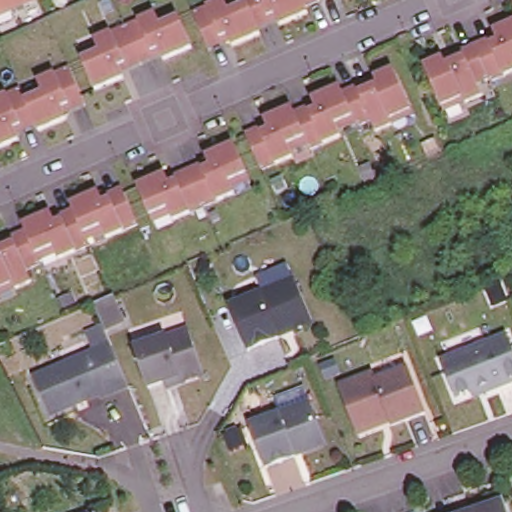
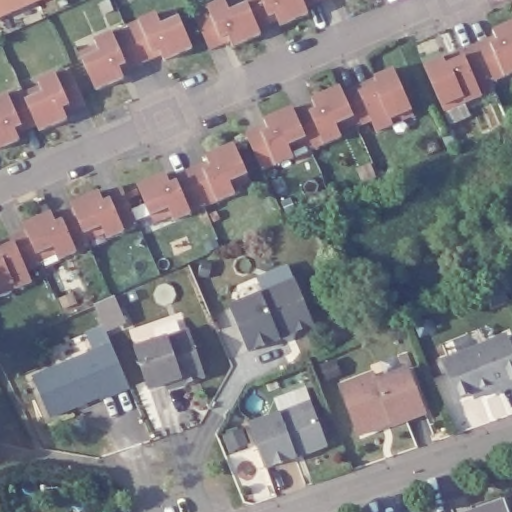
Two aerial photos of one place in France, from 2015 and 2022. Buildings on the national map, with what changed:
unchanged [(17,11),(0,19),(0,0),(12,0),(17,11)]
unchanged [(17,11),(12,0),(42,0),(17,11)]
unchanged [(206,49),(192,17),(224,2),(229,15),(245,7),(242,0),(318,0),(320,5),(305,11),(307,17),(280,30),(275,19),(255,27),(260,37),(232,50),(229,45),(209,54),(206,49)]
unchanged [(120,77),(122,82),(95,94),(82,64),(78,57),(95,49),(93,44),(155,17),(157,22),(175,14),(178,22),(192,52),(163,65),(160,59),(140,68),(120,77)]
unchanged [(489,82),(476,88),(481,99),(465,107),(462,101),(442,110),(423,69),(442,61),(445,68),(462,61),(460,54),(475,47),(477,54),(497,45),(492,34),(512,25),(512,75),(490,86),(489,82)]
unchanged [(20,92),(25,105),(42,97),(37,86),(68,72),(82,102),(82,103),(84,109),(64,117),(66,122),(39,136),(34,124),(14,133),(19,144),(0,152),(0,101),(20,92)]
unchanged [(265,129),(264,123),(291,111),(296,122),(315,114),(311,102),(339,90),(342,97),(357,90),(359,96),(377,87),(374,81),(392,72),(411,114),(390,122),(392,128),(375,136),(370,124),(356,131),(352,121),(335,128),(340,140),(310,154),(304,142),(287,149),(294,161),(262,175),(247,143),(245,137),(265,129)]
unchanged [(132,185),(160,172),(162,177),(182,169),(202,160),(200,155),(227,143),(242,173),(245,181),(227,188),(229,192),(167,220),(165,215),(147,222),(145,215),(132,185)]
unchanged [(13,252),(10,246),(25,240),(22,234),(50,222),(55,232),(75,224),(70,212),(98,200),(100,206),(121,197),(124,202),(138,234),(107,247),(101,236),(85,243),(90,255),(59,268),(54,256),(36,263),(40,273),(26,280),(31,291),(15,298),(0,305),(0,258),(13,252)]
unchanged [(249,355),(230,310),(295,282),(312,322),(309,329),(295,335),(280,342),(249,355)]
unchanged [(116,300),(127,323),(106,332),(96,309),(116,300)]
unchanged [(165,387),(150,392),(137,351),(189,333),(202,372),(200,382),(188,386),(167,393),(165,387)]
unchanged [(458,401),(442,363),(505,338),(512,354),(512,384),(485,395),(474,400),(472,395),(458,401)]
unchanged [(130,390),(101,402),(99,400),(50,421),(34,382),(112,348),(130,390)]
unchanged [(358,432),(342,388),(375,376),(377,382),(409,371),(426,416),(394,428),(393,426),(360,438),(358,432)]
unchanged [(267,467),(250,423),(310,400),(326,440),(323,445),(307,452),(295,456),(267,467)]
unchanged [(512,512),(487,512),(509,505),(512,512)]

